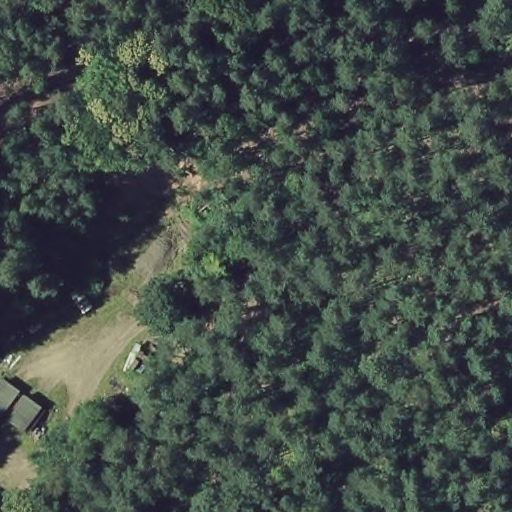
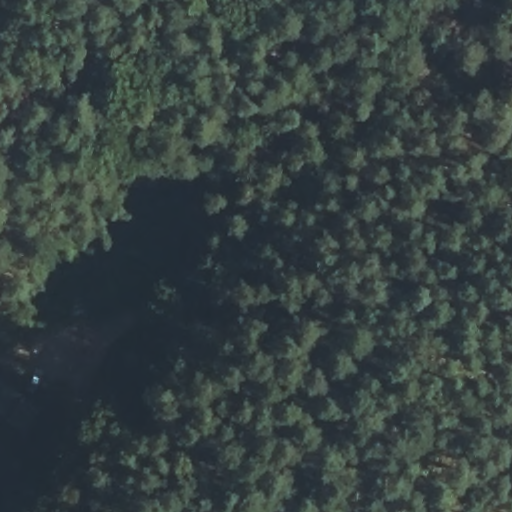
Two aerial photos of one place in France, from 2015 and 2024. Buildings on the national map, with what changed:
unchanged [(0,415),(0,385),(6,377),(44,407),(25,434),(0,415)]

